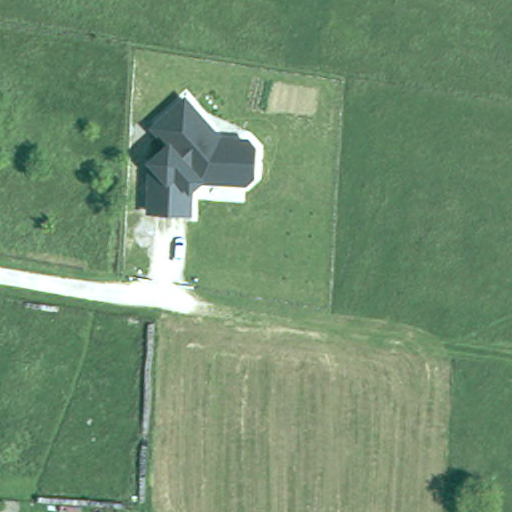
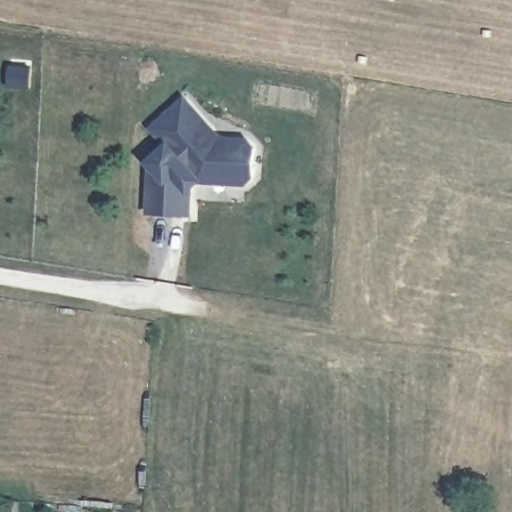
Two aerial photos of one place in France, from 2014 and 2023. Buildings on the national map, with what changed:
unchanged [(222,137),(254,139),(255,185),(198,182),(192,188),(192,217),(148,213),(150,175),(143,165),(163,146),(145,125),(187,93),(222,137)]

